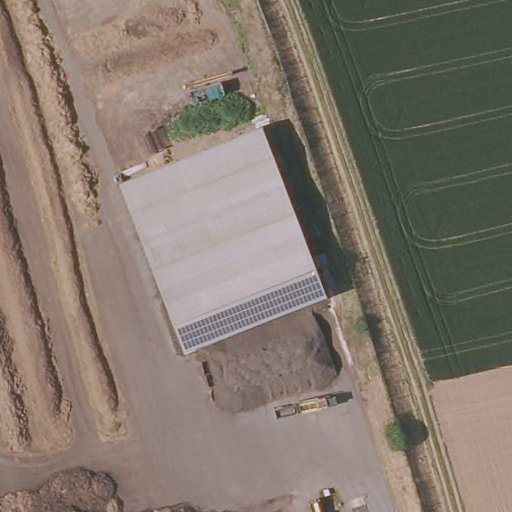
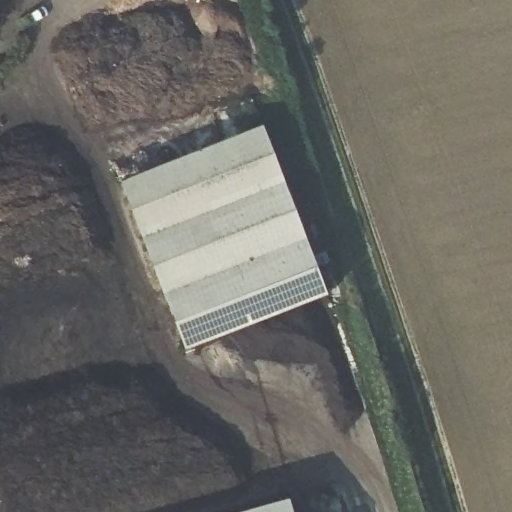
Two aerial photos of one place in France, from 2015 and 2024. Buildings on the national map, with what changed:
unchanged [(261,126),(328,296),(185,351),(120,182),(261,126)]
new [(292,512),(244,512),(288,500),(292,512)]

